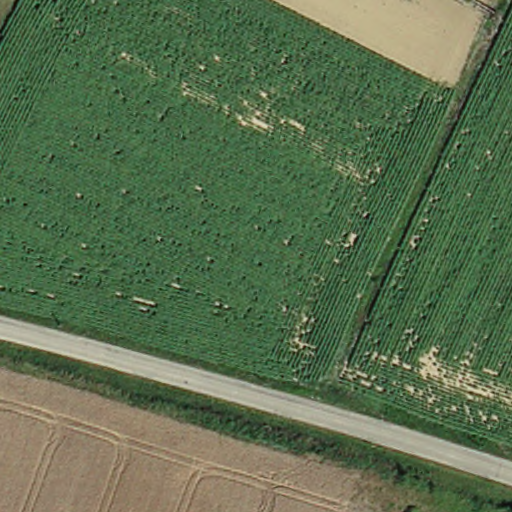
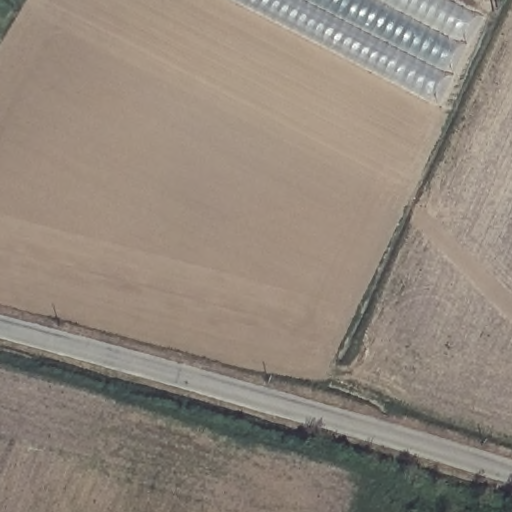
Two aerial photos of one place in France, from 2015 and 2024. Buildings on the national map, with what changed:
new [(226,0),(441,0),(471,16),(430,105),(226,0)]

